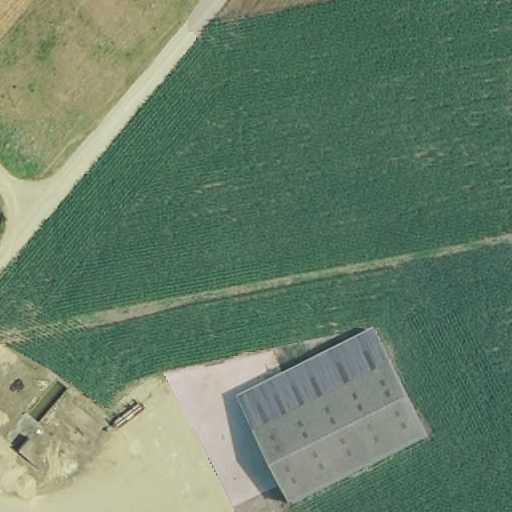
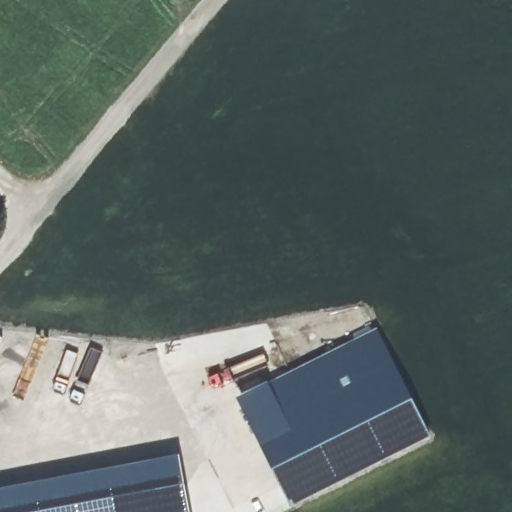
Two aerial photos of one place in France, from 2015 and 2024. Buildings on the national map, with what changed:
unchanged [(243,398),(380,331),(397,367),(261,434),(243,398)]
unchanged [(397,367),(430,434),(296,503),(261,434),(397,367)]
new [(0,489),(180,455),(191,512),(0,512),(0,489)]

